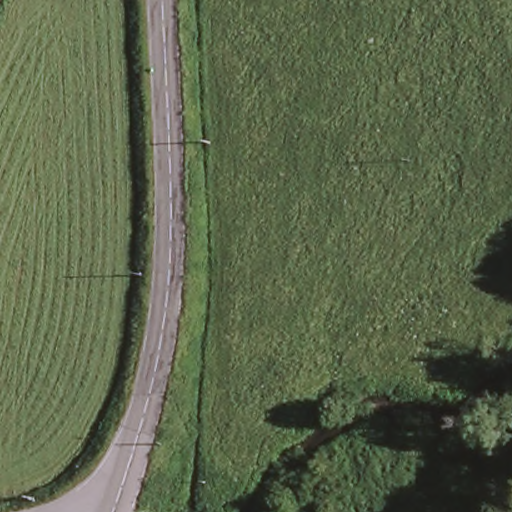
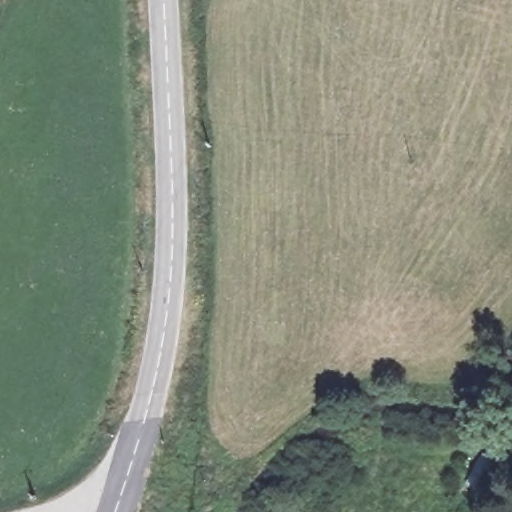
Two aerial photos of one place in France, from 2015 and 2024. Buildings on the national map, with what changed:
[]

